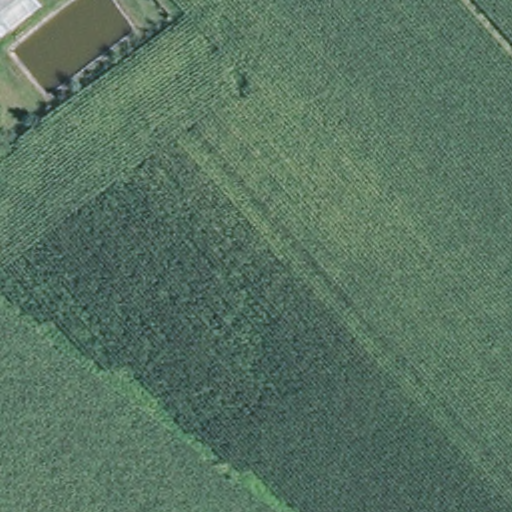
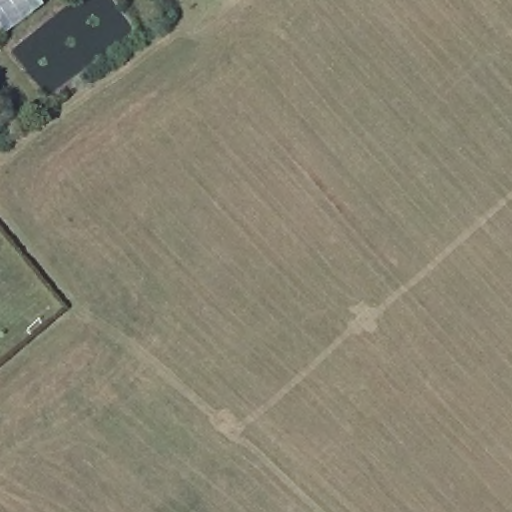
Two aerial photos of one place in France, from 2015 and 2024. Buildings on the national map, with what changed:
unchanged [(2,36),(0,33),(0,0),(37,0),(41,6),(2,36)]

